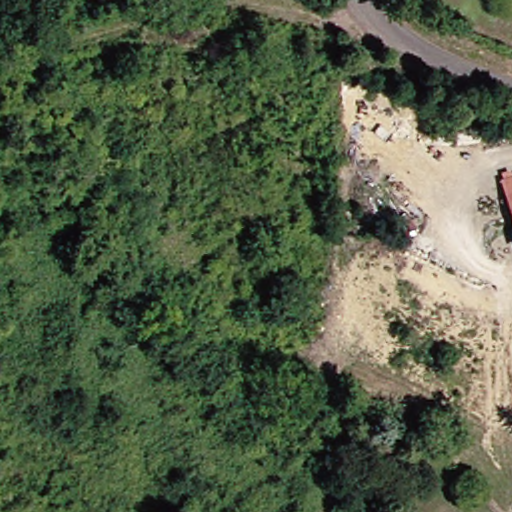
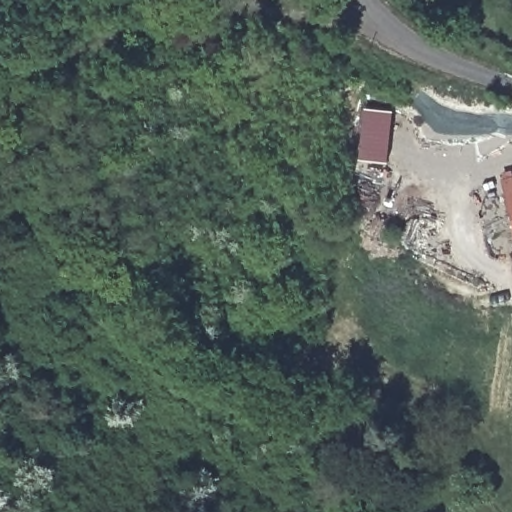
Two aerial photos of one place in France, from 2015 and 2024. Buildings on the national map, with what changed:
new [(367,109),(393,112),(388,162),(361,159),(367,109)]
unchanged [(512,191),(512,240),(500,194),(512,191)]

